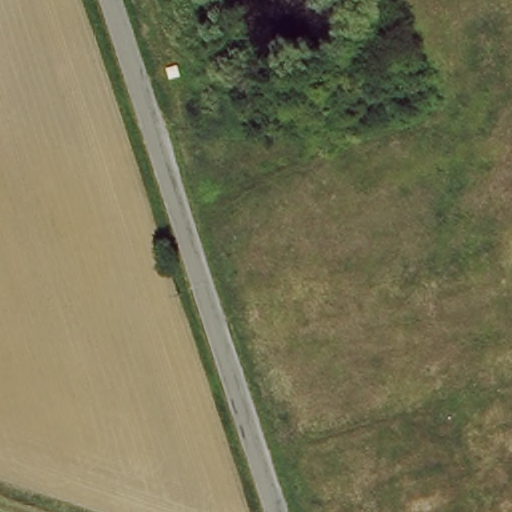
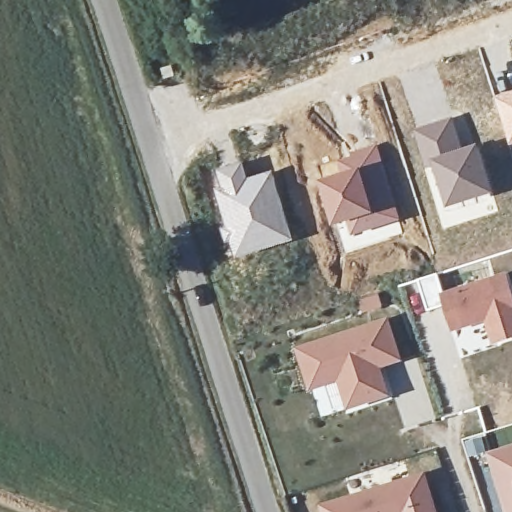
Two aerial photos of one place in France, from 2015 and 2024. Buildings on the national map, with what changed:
new [(512,145),(510,145),(493,95),(512,89),(512,145)]
new [(454,115),(464,148),(432,162),(427,165),(414,127),(454,115)]
new [(352,237),(347,222),(336,226),(320,180),(342,172),(339,161),(350,157),(348,150),(377,141),(398,205),(402,220),(352,237)]
new [(464,148),(480,143),(496,193),(447,210),(432,162),(464,148)]
new [(242,160),(249,177),(273,170),(296,240),(237,258),(210,174),(242,160)]
new [(507,272),(512,291),(512,339),(492,345),(483,323),(451,333),(443,307),(426,313),(438,275),(444,292),(507,272)]
new [(390,317),(403,362),(382,368),(391,398),(347,412),(339,385),(310,392),(296,350),(390,317)]
new [(512,512),(507,512),(488,455),(512,447),(512,512)]
new [(319,505),(425,472),(436,512),(320,512),(319,505)]

